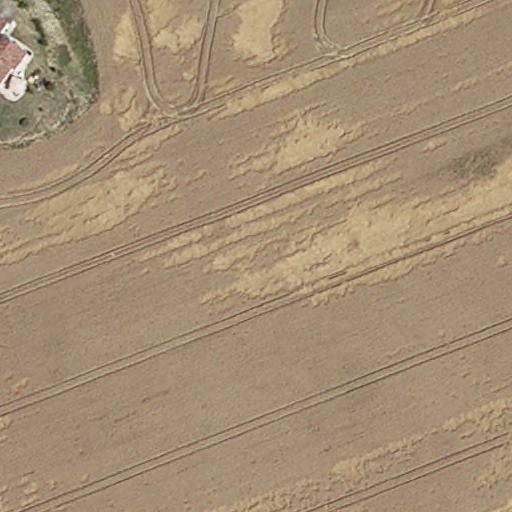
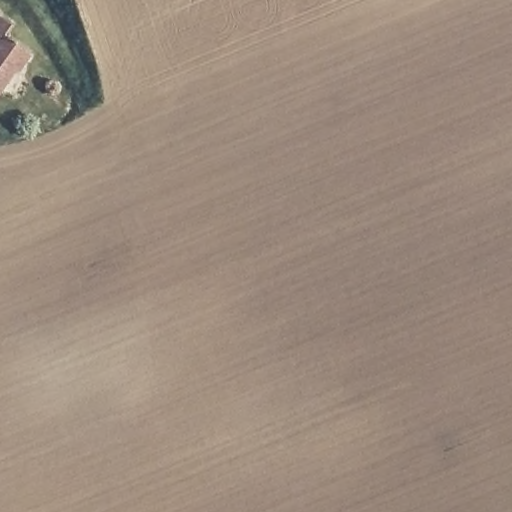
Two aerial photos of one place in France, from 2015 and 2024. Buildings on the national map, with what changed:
unchanged [(11,22),(4,34),(31,54),(0,95),(0,16),(11,22)]

